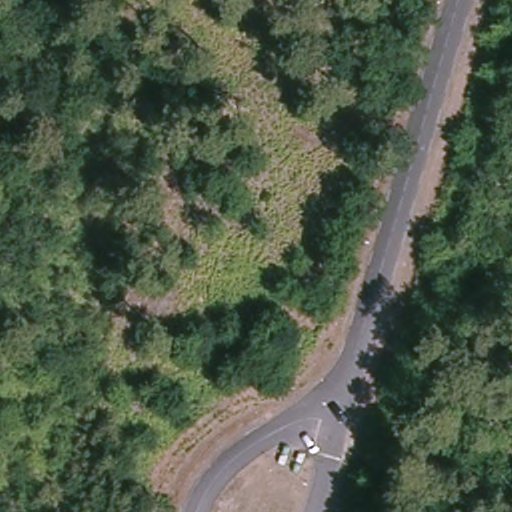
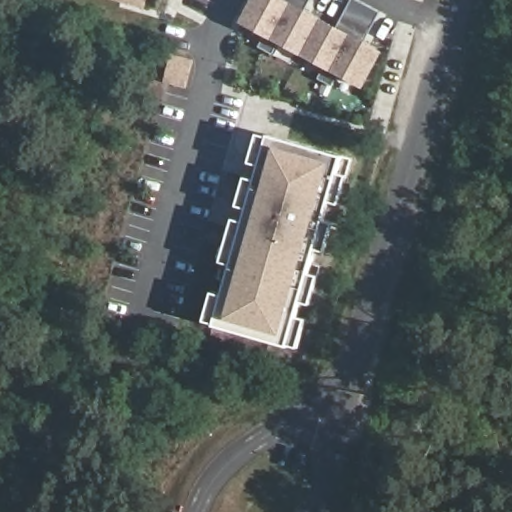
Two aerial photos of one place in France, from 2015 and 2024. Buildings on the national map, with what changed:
new [(114,0),(148,0),(145,9),(114,0)]
new [(240,23),(251,0),(287,0),(383,51),(365,90),(240,23)]
new [(173,57),(193,62),(187,86),(166,81),(173,57)]
new [(215,327),(270,136),(343,157),(288,347),(215,327)]

